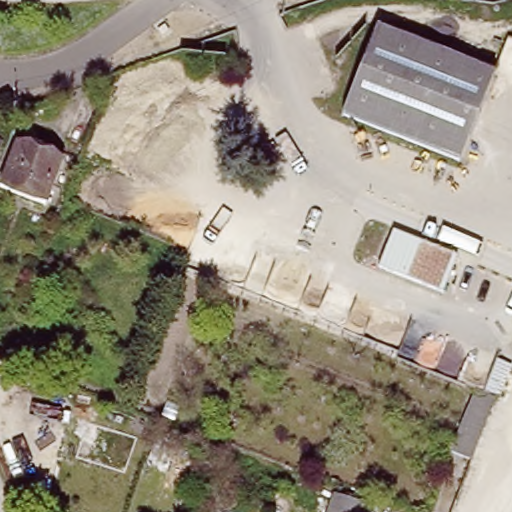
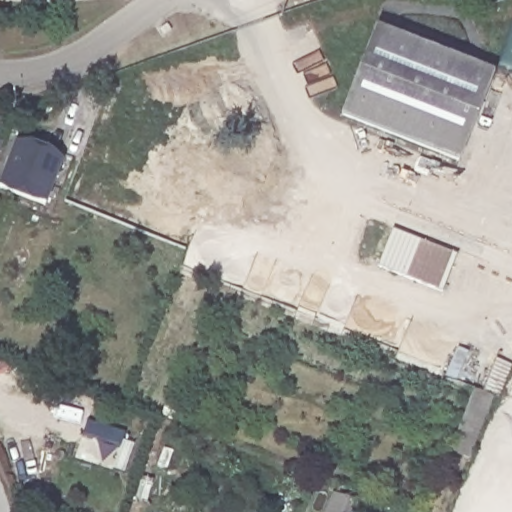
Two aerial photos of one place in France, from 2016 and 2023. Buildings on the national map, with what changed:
unchanged [(344,114),(376,28),(494,72),(459,159),(344,114)]
unchanged [(0,184),(0,182),(16,141),(64,160),(47,203),(0,184)]
unchanged [(380,265),(394,230),(457,256),(443,291),(380,265)]
unchanged [(497,397),(487,392),(484,391),(496,359),(500,361),(510,365),(512,366),(499,398),(497,397)]
unchanged [(477,389),(495,398),(472,458),(452,449),(477,389)]
unchanged [(336,481),(339,483),(351,487),(342,512),(324,512),(336,481)]

